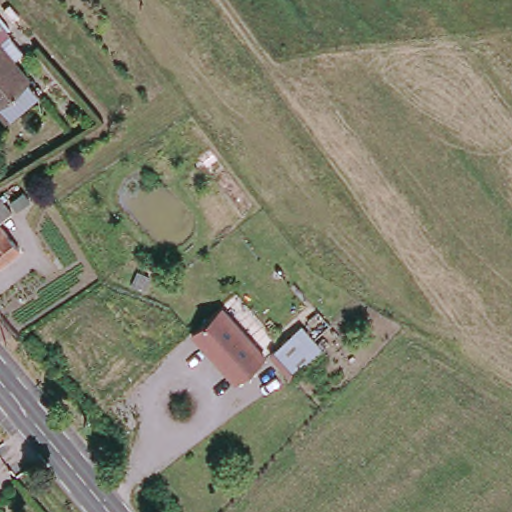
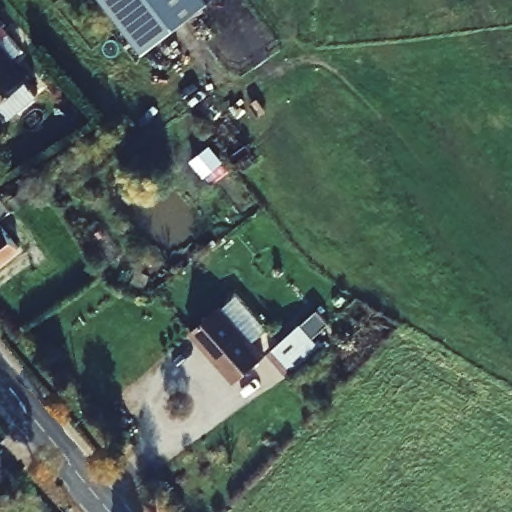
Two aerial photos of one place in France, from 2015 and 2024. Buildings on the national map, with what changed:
new [(222,10),(154,63),(105,0),(213,0),(222,10)]
unchanged [(11,58),(35,90),(7,115),(0,107),(0,22),(22,49),(11,58)]
unchanged [(0,263),(0,212),(25,242),(0,263)]
unchanged [(224,304),(269,353),(240,379),(197,330),(224,304)]
unchanged [(275,350),(300,327),(306,322),(329,346),(324,350),(297,374),(275,350)]

